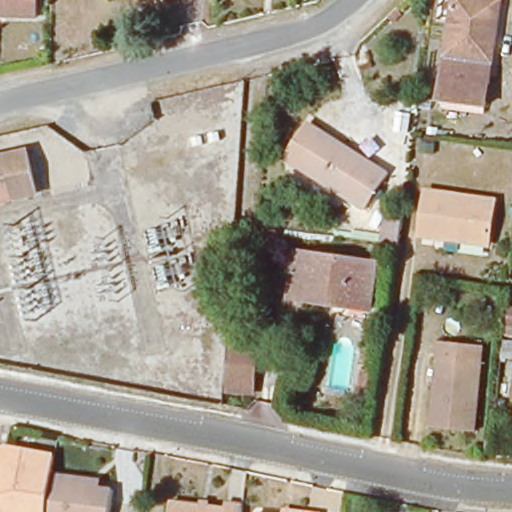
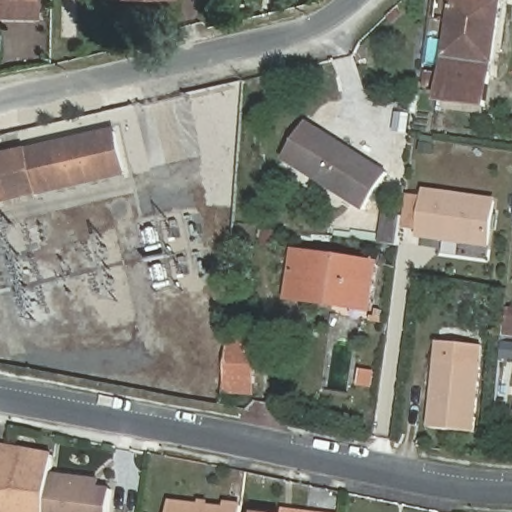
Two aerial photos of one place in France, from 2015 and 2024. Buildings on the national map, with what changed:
unchanged [(0,17),(0,0),(36,0),(35,18),(0,17)]
unchanged [(440,89),(452,0),(499,0),(486,95),(440,89)]
unchanged [(365,210),(284,158),(307,122),(388,174),(365,210)]
new [(27,151),(27,148),(116,128),(126,175),(38,196),(37,193),(27,151)]
unchanged [(27,151),(37,193),(0,202),(0,158),(27,151)]
unchanged [(488,245),(421,236),(427,192),(495,202),(488,245)]
unchanged [(386,216),(401,219),(397,246),(382,243),(386,216)]
unchanged [(377,263),(371,304),(331,299),(330,304),(288,299),(296,251),(377,263)]
unchanged [(231,336),(257,338),(255,363),(254,389),(227,387),(229,362),(231,336)]
unchanged [(432,427),(440,342),(482,346),(473,432),(432,427)]
unchanged [(362,383),(363,371),(373,373),(372,385),(362,383)]
unchanged [(5,447),(54,457),(52,475),(48,512),(0,512),(0,501),(0,451),(5,447)]
unchanged [(90,479),(89,488),(112,490),(110,512),(48,512),(52,475),(90,479)]
unchanged [(171,503),(225,509),(225,504),(242,506),(241,512),(170,512),(171,503)]

